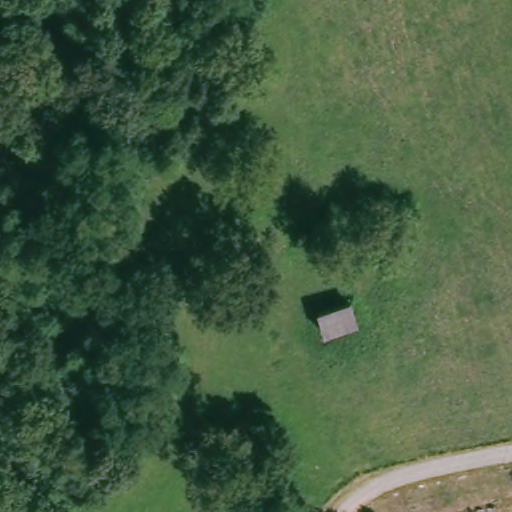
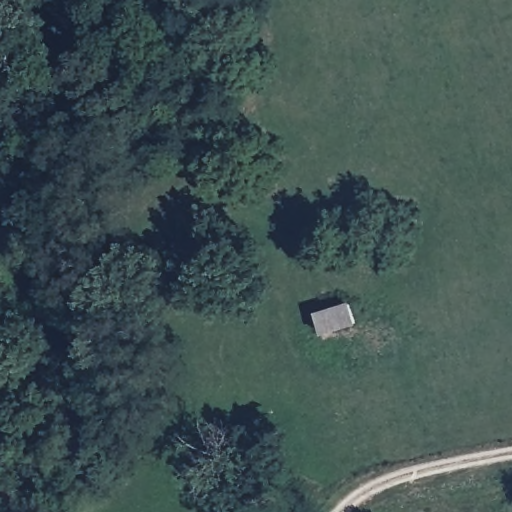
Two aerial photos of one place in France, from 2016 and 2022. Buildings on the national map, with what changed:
unchanged [(356,298),(365,322),(327,336),(320,314),(356,298)]

